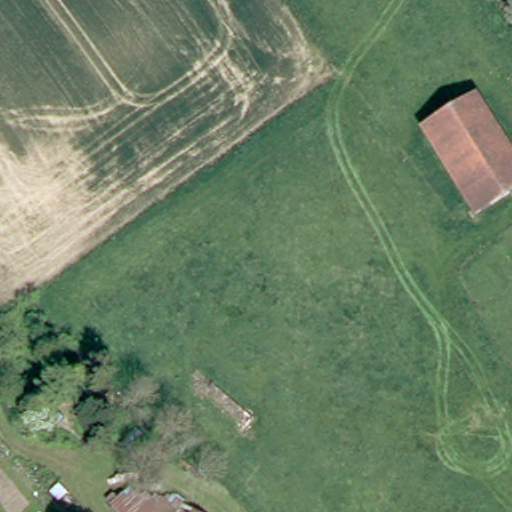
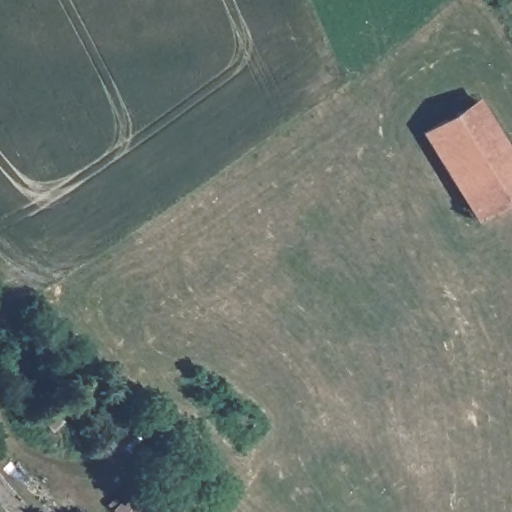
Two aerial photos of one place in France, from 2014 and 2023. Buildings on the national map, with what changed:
unchanged [(424,133),(477,100),(512,155),(512,193),(478,215),(424,133)]
unchanged [(154,492),(168,501),(183,510),(181,512),(114,512),(133,494),(154,492)]
unchanged [(186,506),(193,512),(181,512),(183,510),(186,506)]

